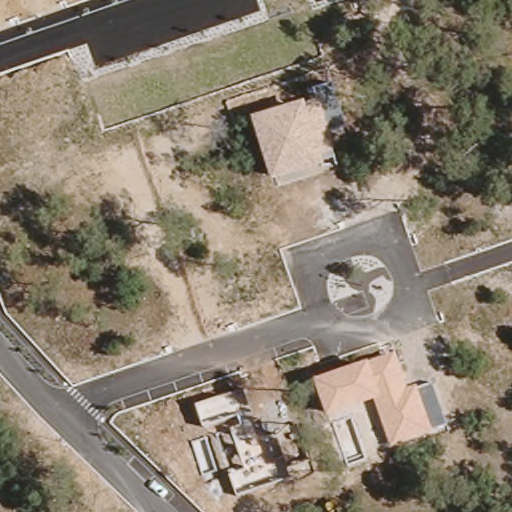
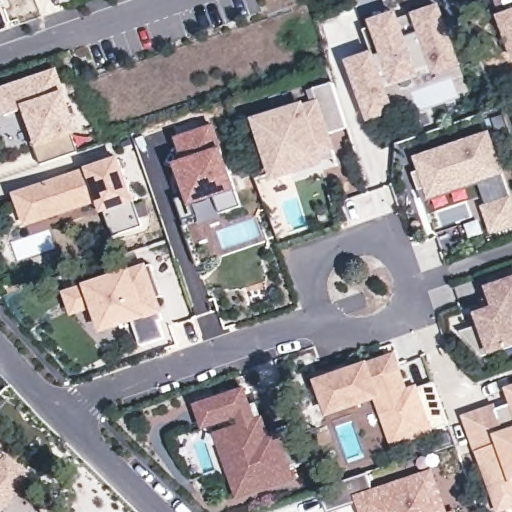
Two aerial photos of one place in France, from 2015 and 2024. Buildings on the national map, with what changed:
unchanged [(0,5),(0,0),(1,0),(3,5),(0,5)]
new [(369,119),(365,104),(350,64),(373,56),(364,31),(398,20),(405,39),(422,34),(416,17),(440,9),(459,65),(435,73),(433,67),(416,73),(417,75),(393,84),(391,76),(381,80),(387,97),(392,111),(369,119)]
new [(501,15),(512,11),(512,50),(501,15)]
new [(73,138),(78,152),(42,164),(23,111),(3,118),(0,107),(0,89),(58,70),(81,134),(73,138)]
unchanged [(254,119),(306,104),(316,100),(313,91),(333,85),(349,128),(333,134),(339,158),(326,166),(274,184),(254,119)]
new [(186,191),(180,173),(188,170),(178,139),(213,127),(240,207),(220,214),(213,197),(191,205),(196,217),(184,222),(175,195),(186,191)]
new [(512,194),(512,227),(492,234),(483,207),(487,205),(480,185),(430,202),(426,191),(420,193),(414,174),(420,172),(415,158),(491,132),(512,194)]
new [(143,227),(112,237),(100,204),(25,228),(13,194),(120,157),(143,227)]
new [(153,269),(162,298),(156,300),(151,287),(163,321),(159,322),(165,339),(141,347),(132,322),(103,331),(95,307),(73,314),(67,295),(151,266),(153,269)]
new [(497,298),(492,300),(488,288),(512,280),(512,346),(490,353),(477,315),(500,307),(497,298)]
unchanged [(316,382),(369,364),(397,354),(408,389),(417,385),(418,389),(432,384),(446,425),(433,430),(434,434),(391,448),(374,402),(327,418),(316,382)]
new [(257,419),(264,416),(270,434),(299,424),(310,461),(291,467),(295,481),(236,500),(215,434),(239,426),(238,421),(203,431),(195,405),(246,388),(257,419)]
new [(508,393),(512,391),(512,512),(500,512),(465,417),(511,401),(508,393)]
new [(0,449),(0,445),(2,447),(0,449)]
new [(15,491),(36,512),(24,512),(0,487),(0,455),(26,481),(15,491)]
unchanged [(328,512),(320,490),(367,474),(374,493),(431,474),(444,512),(357,512),(354,503),(328,512)]
new [(0,512),(0,487),(24,512),(0,512)]

